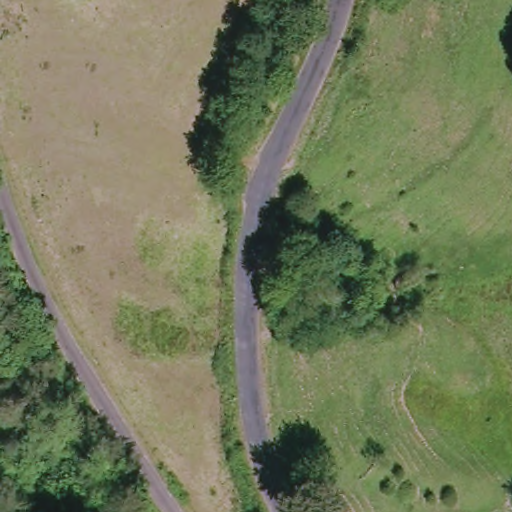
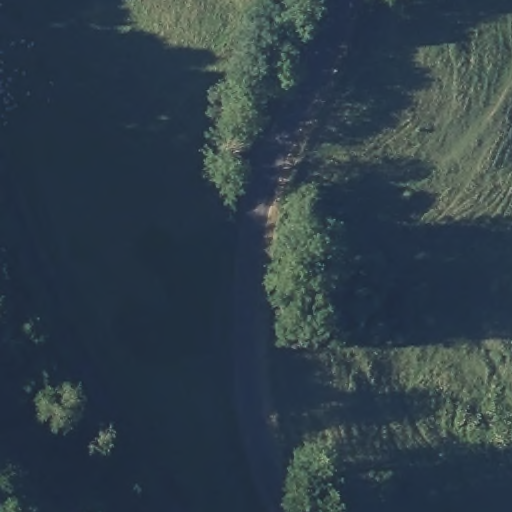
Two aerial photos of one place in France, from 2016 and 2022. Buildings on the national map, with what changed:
[]

